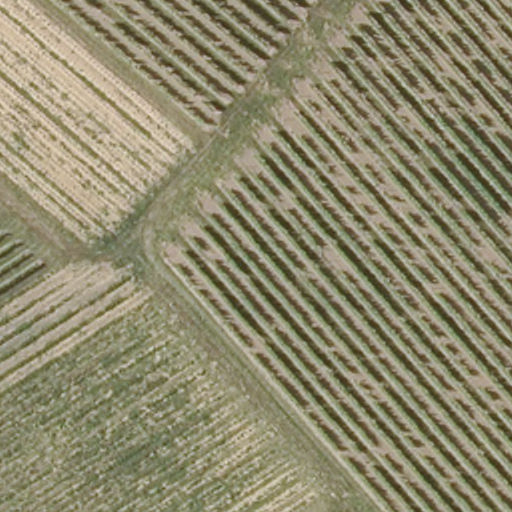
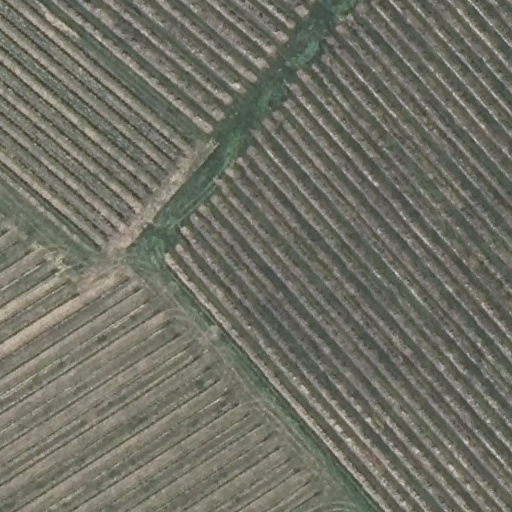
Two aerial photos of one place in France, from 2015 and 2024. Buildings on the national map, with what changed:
[]

